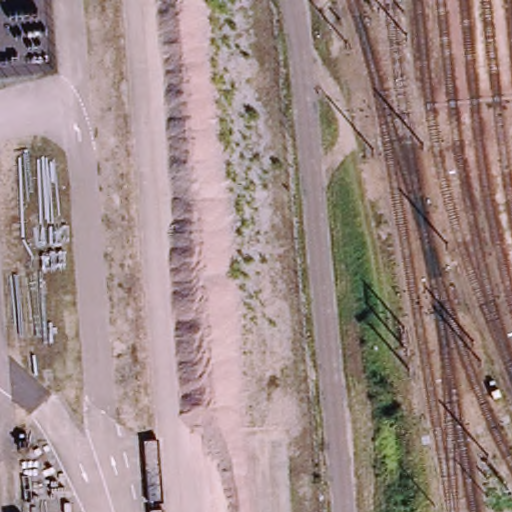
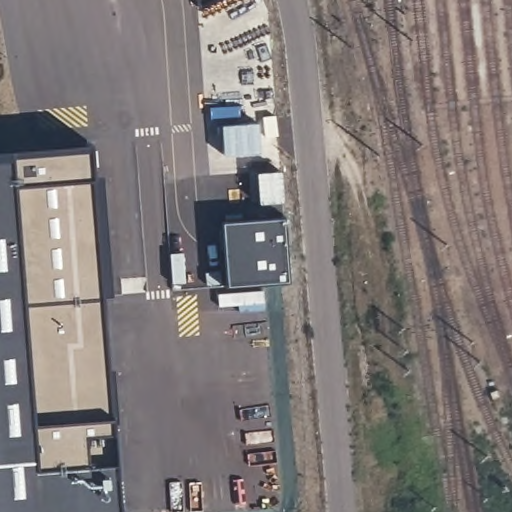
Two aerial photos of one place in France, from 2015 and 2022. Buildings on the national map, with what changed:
new [(95,176),(110,413),(114,460),(118,512),(0,512),(0,147),(90,140),(95,176)]

